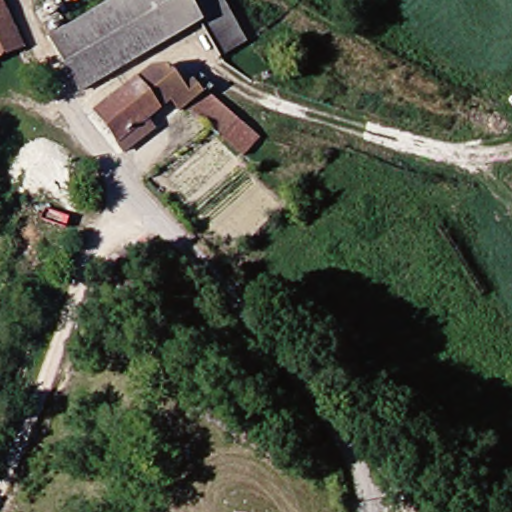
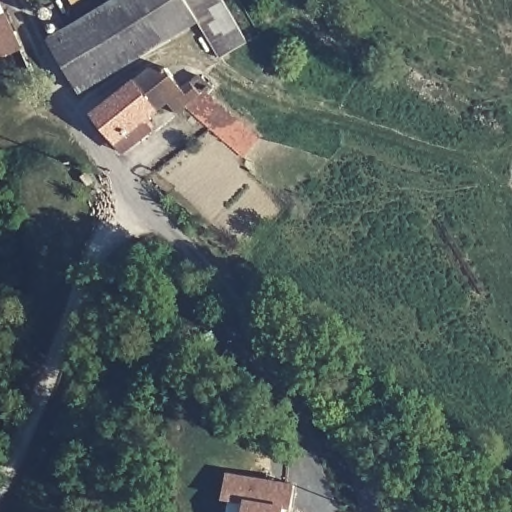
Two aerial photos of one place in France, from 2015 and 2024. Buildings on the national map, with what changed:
unchanged [(0,44),(0,0),(10,0),(27,25),(0,44)]
unchanged [(202,19),(89,100),(48,34),(64,24),(71,36),(121,4),(119,0),(188,0),(191,4),(202,19)]
unchanged [(225,0),(250,38),(225,54),(202,19),(191,4),(196,0),(225,0)]
unchanged [(245,158),(219,134),(188,106),(182,113),(173,102),(121,146),(96,118),(155,66),(178,90),(190,79),(203,91),(232,117),(259,142),(245,158)]
unchanged [(29,199),(19,192),(41,154),(52,161),(29,199)]
unchanged [(151,304),(131,274),(164,254),(183,284),(151,304)]
new [(292,509),(285,508),(284,512),(244,512),(245,503),(223,499),(229,472),(297,483),(292,509)]

